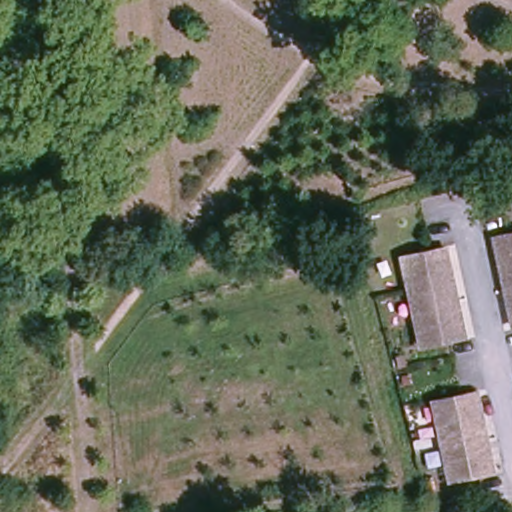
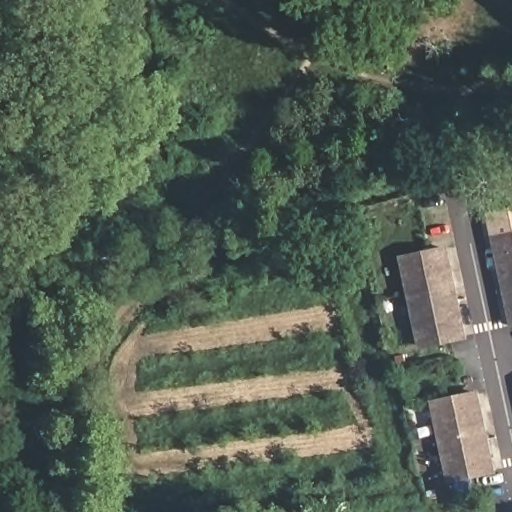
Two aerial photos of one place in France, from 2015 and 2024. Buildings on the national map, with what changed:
unchanged [(512,236),(512,295),(500,239),(512,236)]
unchanged [(470,341),(426,350),(407,259),(409,258),(450,250),(470,341)]
unchanged [(493,467),(450,477),(433,399),(477,390),(493,467)]

